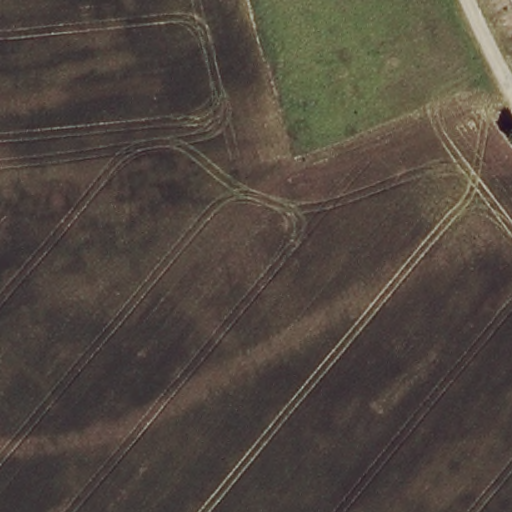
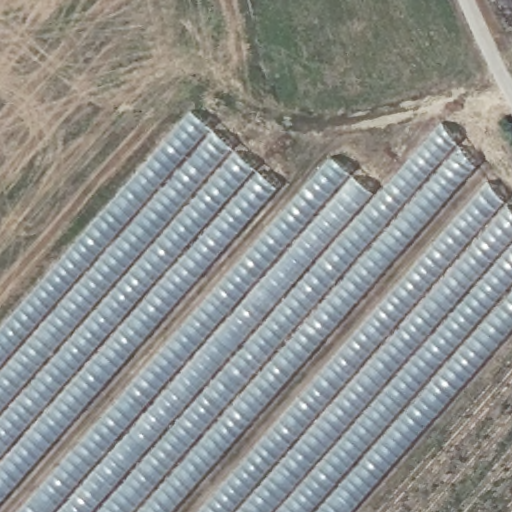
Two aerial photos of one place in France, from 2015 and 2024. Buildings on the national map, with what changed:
new [(277,187),(0,503),(0,328),(190,111),(277,187)]
new [(375,196),(439,122),(477,167),(173,512),(19,512),(331,157),(375,196)]
new [(512,328),(350,512),(198,512),(486,182),(512,214),(512,328)]
new [(512,512),(375,512),(512,357),(512,512)]

